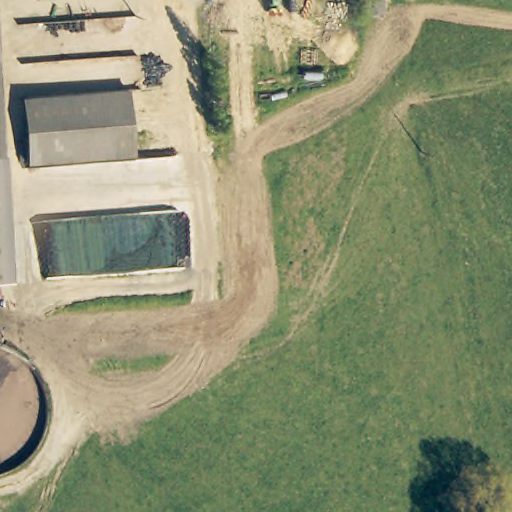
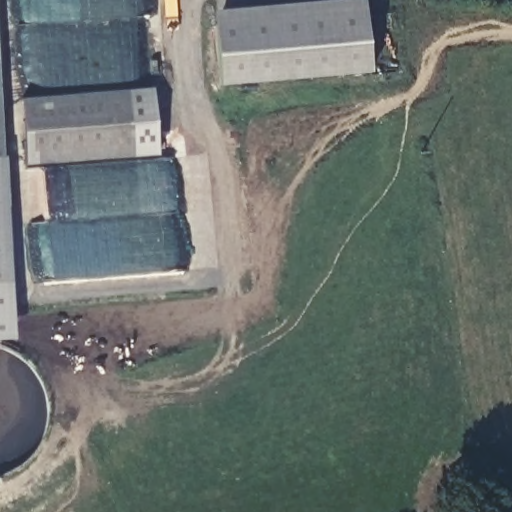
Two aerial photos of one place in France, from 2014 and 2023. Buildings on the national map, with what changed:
new [(372,72),(221,86),(213,10),(336,0),(365,0),(372,72)]
unchanged [(8,154),(8,174),(0,175),(0,30),(8,154)]
unchanged [(161,89),(165,154),(26,161),(22,96),(161,89)]
unchanged [(19,346),(0,347),(0,175),(8,174),(19,346)]

